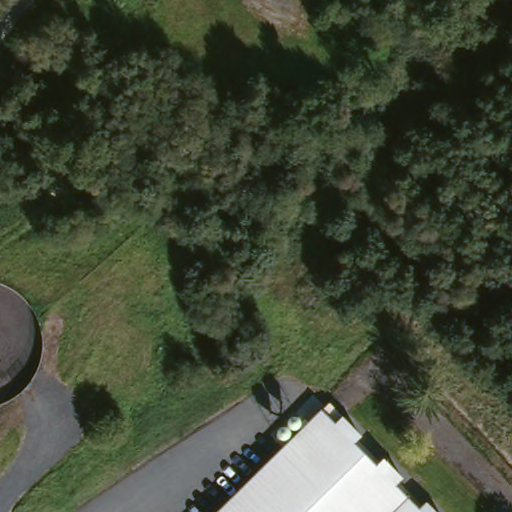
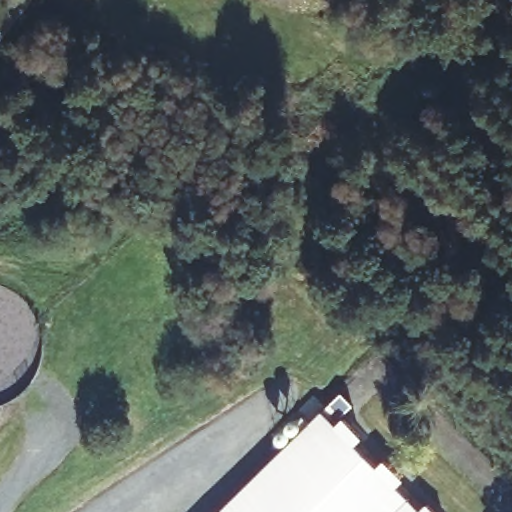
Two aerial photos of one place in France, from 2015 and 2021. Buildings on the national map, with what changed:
unchanged [(422,512),(226,512),(324,412),(422,512)]

